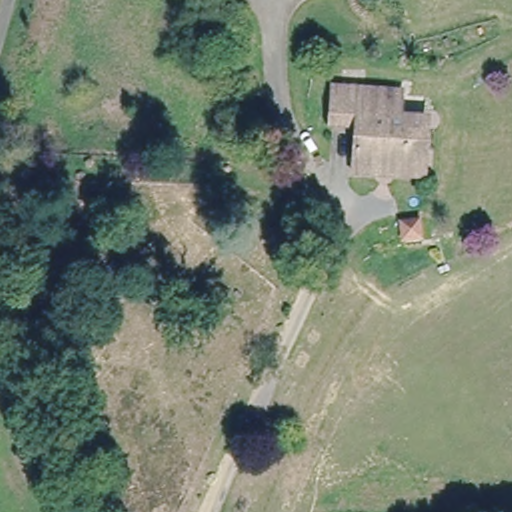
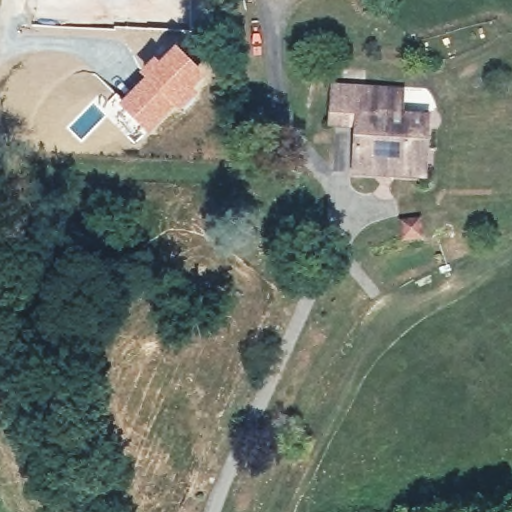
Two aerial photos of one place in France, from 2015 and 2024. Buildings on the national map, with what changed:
new [(142,77),(139,73),(154,57),(159,61),(175,46),(207,78),(180,112),(175,108),(149,134),(117,104),(142,77)]
unchanged [(416,174),(355,173),(355,155),(355,123),(333,123),(333,89),(355,88),(397,89),(397,114),(428,115),(429,147),(430,174),(416,174)]

